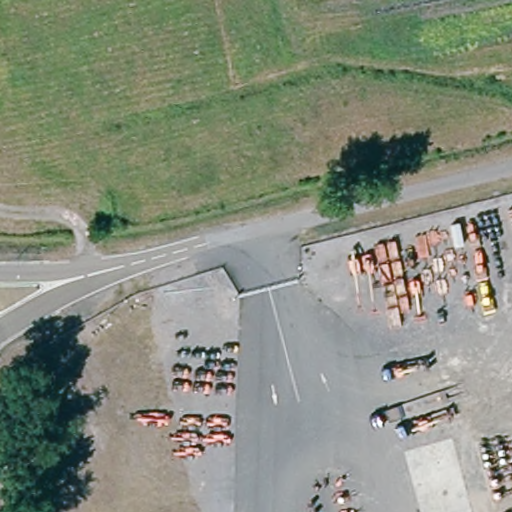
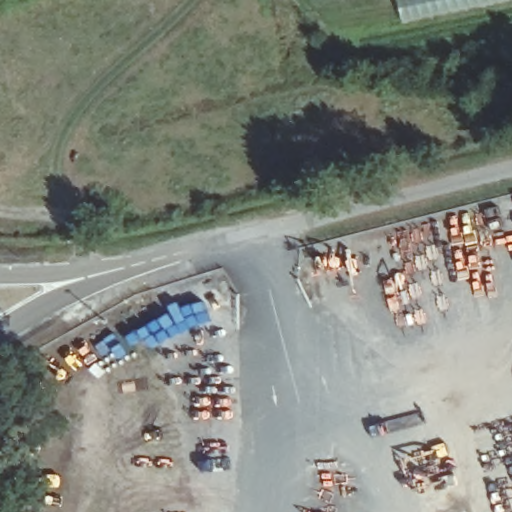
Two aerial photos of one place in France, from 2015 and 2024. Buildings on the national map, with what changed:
new [(403,21),(399,0),(504,0),(403,21)]

